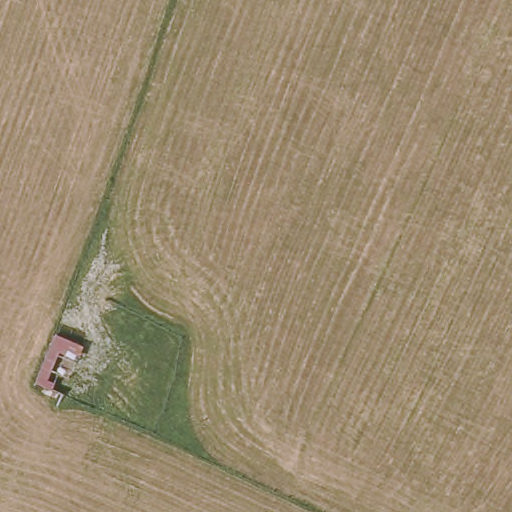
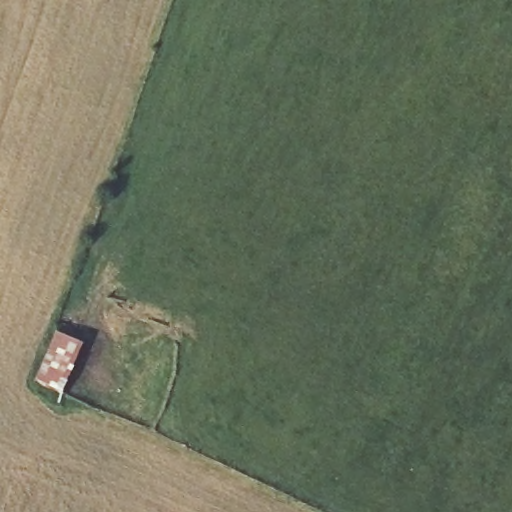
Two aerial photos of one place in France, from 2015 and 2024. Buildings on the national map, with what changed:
unchanged [(32,387),(54,339),(85,351),(63,403),(32,387)]

